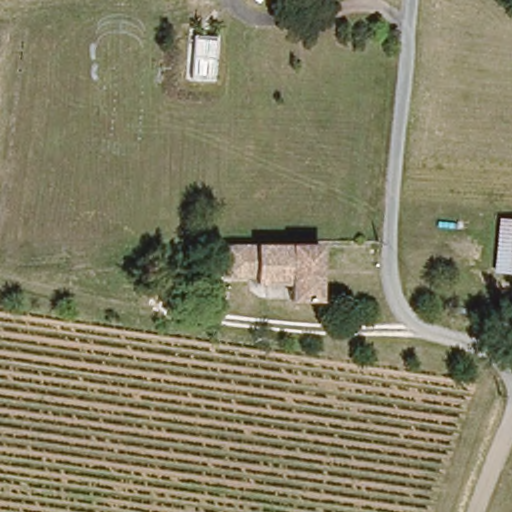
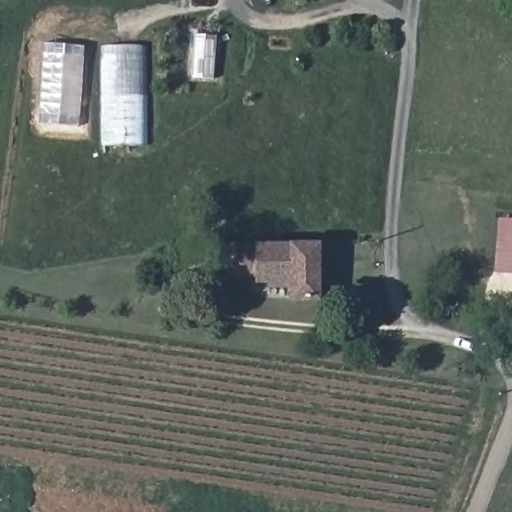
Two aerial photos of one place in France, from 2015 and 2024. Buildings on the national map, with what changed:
new [(79,126),(38,122),(44,42),(84,46),(79,126)]
new [(105,145),(104,46),(141,46),(143,143),(105,145)]
unchanged [(497,271),(501,221),(512,221),(512,273),(497,271)]
unchanged [(317,241),(319,293),(290,293),(289,281),(253,281),(253,274),(225,273),(224,241),(317,241)]

